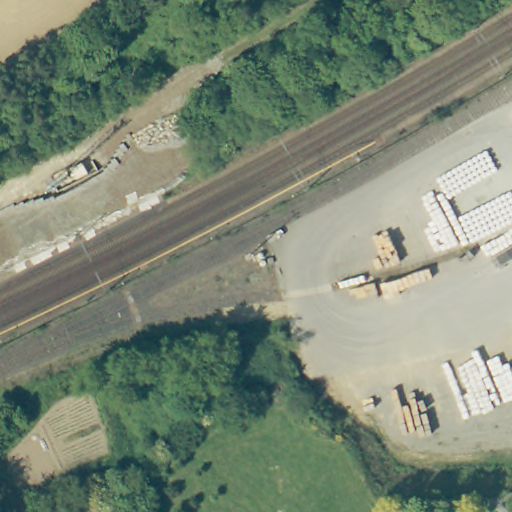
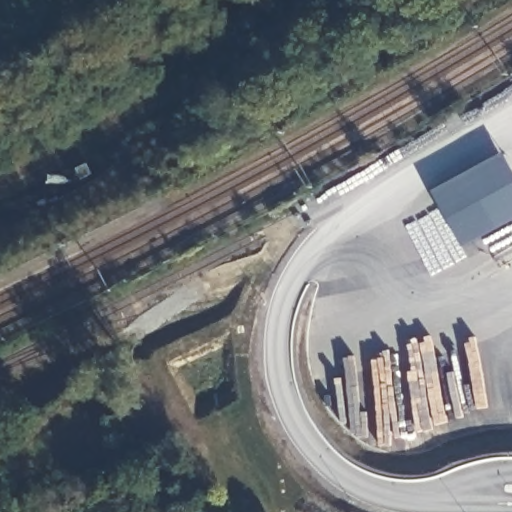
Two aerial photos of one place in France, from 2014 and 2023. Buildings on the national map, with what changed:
new [(501,153),(512,172),(512,218),(461,246),(430,191),(501,153)]
new [(82,166),(89,176),(79,182),(72,172),(82,166)]

